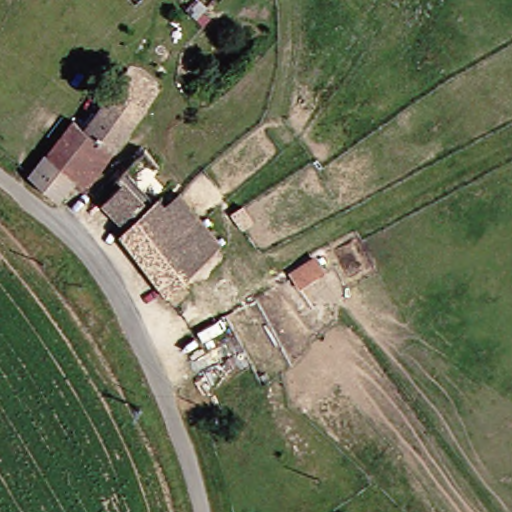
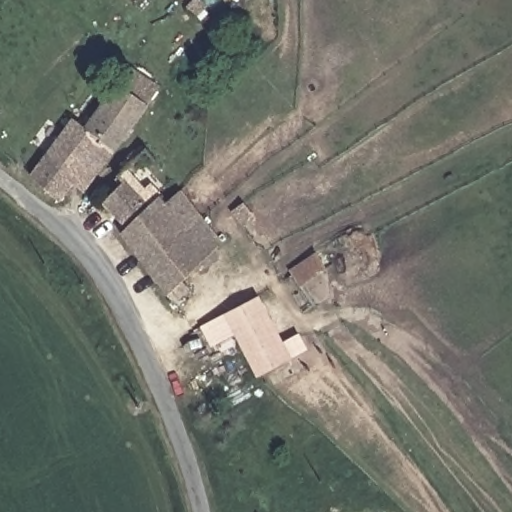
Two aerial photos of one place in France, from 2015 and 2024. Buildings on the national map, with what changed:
unchanged [(78,177),(60,199),(34,176),(84,119),(94,127),(127,86),(140,71),(168,91),(156,108),(102,174),(99,171),(88,186),(78,177)]
unchanged [(172,296),(122,239),(132,230),(107,203),(125,185),(122,180),(130,172),(162,207),(168,202),(175,208),(189,196),(213,221),(233,243),(172,296)]
new [(300,288),(288,271),(317,253),(327,270),(300,288)]
new [(292,360),(257,378),(233,335),(210,346),(202,326),(223,315),(259,296),(292,360)]

